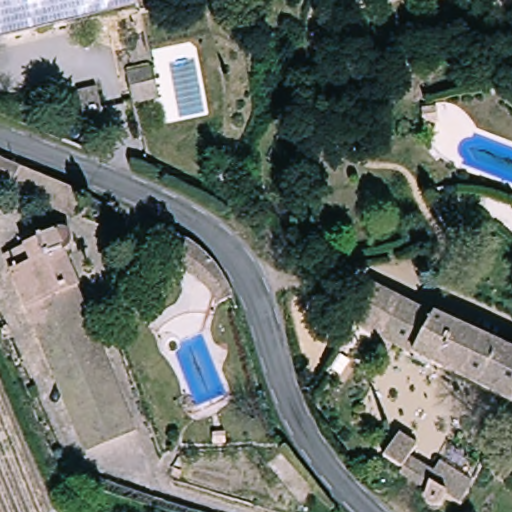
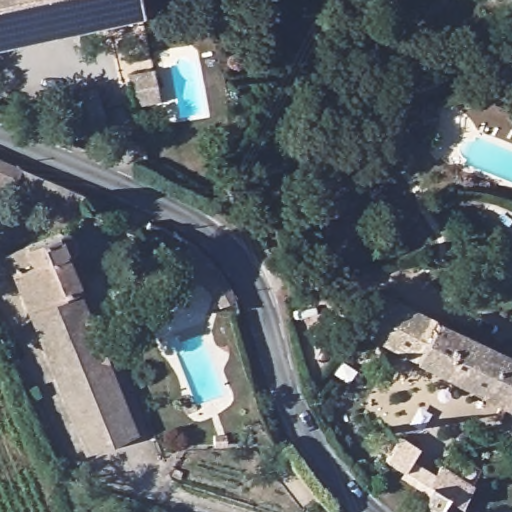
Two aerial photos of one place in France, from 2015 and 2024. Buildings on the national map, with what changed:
unchanged [(130,0),(135,22),(135,23),(12,51),(0,54),(0,0),(130,0)]
unchanged [(157,104),(134,108),(127,78),(152,72),(157,104)]
unchanged [(102,129),(86,132),(83,115),(80,116),(76,97),(95,93),(102,129)]
unchanged [(5,264),(0,251),(0,247),(19,237),(47,223),(49,222),(51,222),(52,222),(54,222),(56,223),(57,224),(59,225),(60,226),(61,228),(61,229),(62,231),(62,233),(62,234),(62,236),(61,238),(60,239),(59,241),(58,242),(56,243),(55,243),(70,282),(21,302),(5,264)]
unchanged [(138,450),(88,470),(21,302),(70,282),(138,450)]
unchanged [(373,290),(512,362),(512,412),(512,413),(353,330),(373,290)]
unchanged [(462,512),(418,512),(424,502),(420,500),(425,491),(398,478),(396,482),(378,472),(392,447),(409,457),(406,463),(432,477),(443,458),(477,479),(462,512)]
unchanged [(52,458),(57,469),(48,473),(43,462),(52,458)]

